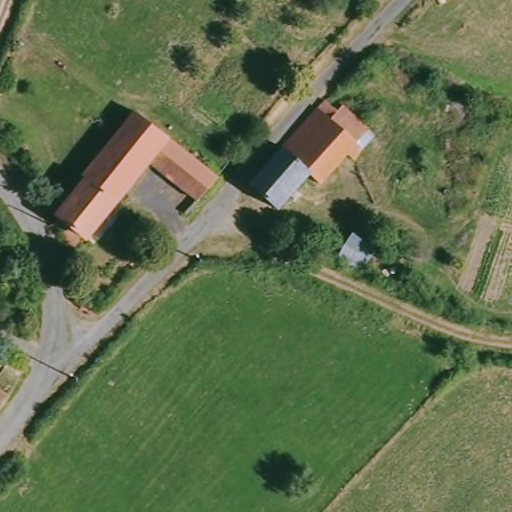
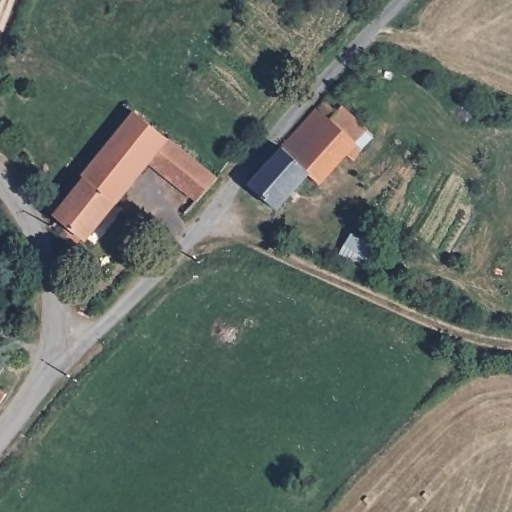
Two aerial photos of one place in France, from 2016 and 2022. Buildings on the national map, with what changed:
unchanged [(304,122),(326,100),(336,109),(341,103),(367,128),(356,141),(364,148),(355,159),(346,153),(320,184),(308,173),(278,207),(251,183),(304,122)]
unchanged [(84,231),(75,240),(53,219),(58,212),(58,207),(84,174),(81,172),(95,155),(136,105),(216,171),(196,195),(151,156),(131,180),(118,196),(88,233),(84,231)]

